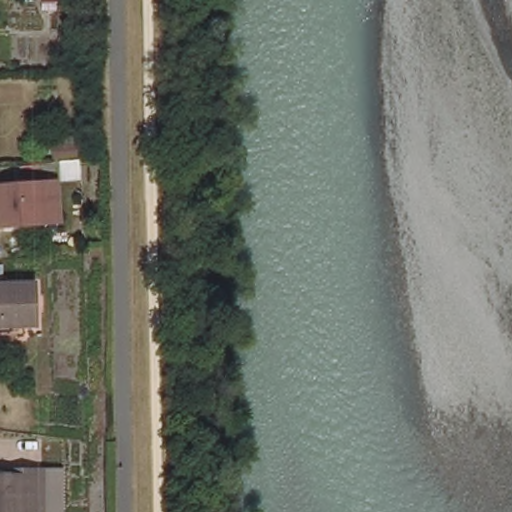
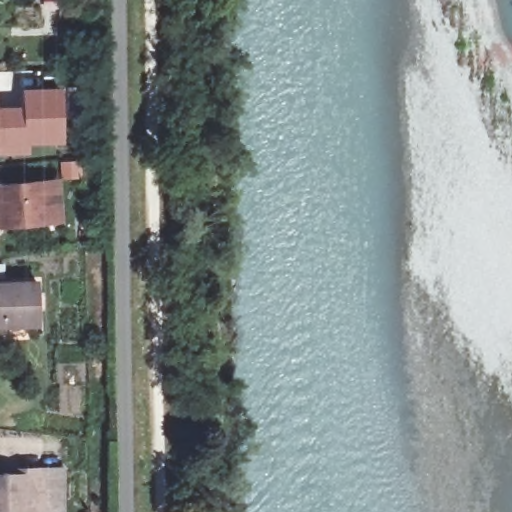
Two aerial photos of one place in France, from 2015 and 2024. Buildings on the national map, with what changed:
new [(23,89),(62,88),(63,143),(31,144),(31,155),(0,156),(0,107),(23,106),(23,89)]
unchanged [(56,157),(55,145),(80,142),(82,155),(56,157)]
unchanged [(61,214),(42,215),(35,224),(0,226),(0,186),(58,181),(61,214)]
unchanged [(9,326),(7,326),(7,333),(0,333),(0,284),(38,282),(40,326),(22,326),(22,319),(18,319),(15,319),(13,319),(13,326),(11,326),(9,326)]
unchanged [(10,466),(27,466),(45,467),(45,508),(45,512),(0,512),(0,473),(10,473),(10,466)]

